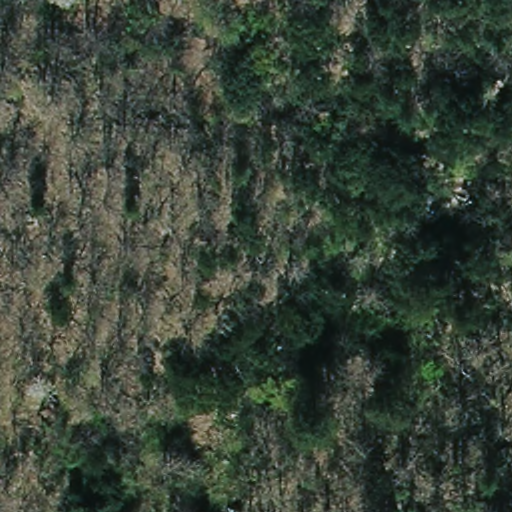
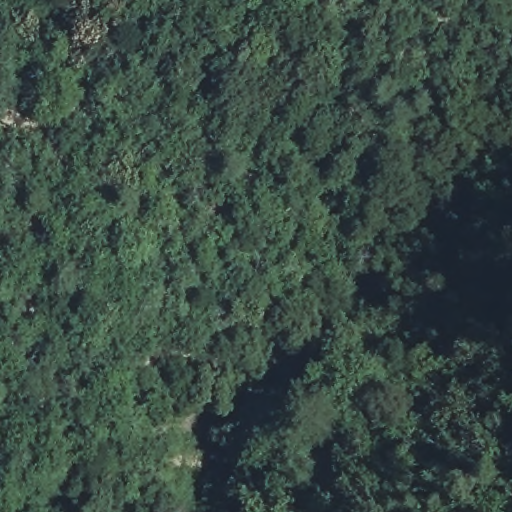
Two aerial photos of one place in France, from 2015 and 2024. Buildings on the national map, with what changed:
[]

